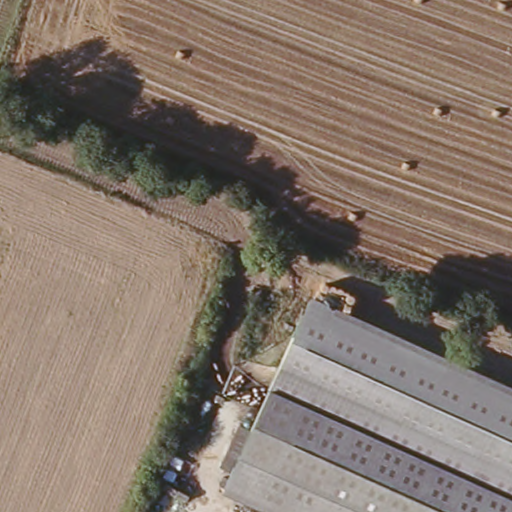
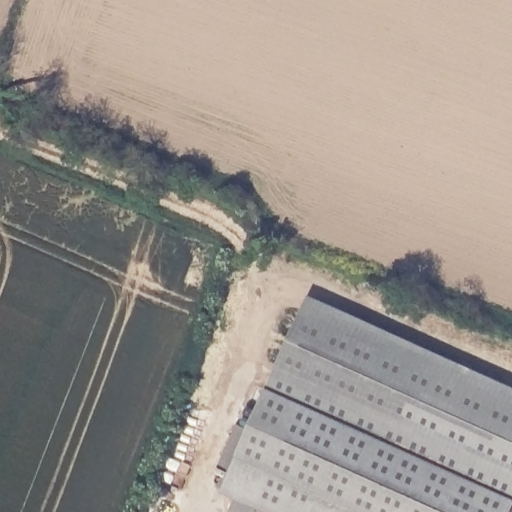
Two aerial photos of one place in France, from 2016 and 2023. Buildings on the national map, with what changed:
unchanged [(306,297),(512,387),(512,483),(271,377),(306,297)]
unchanged [(508,512),(264,512),(220,491),(271,377),(512,483),(512,502),(508,512)]

